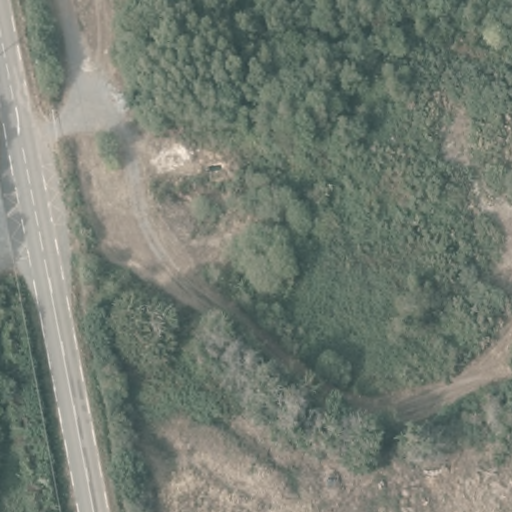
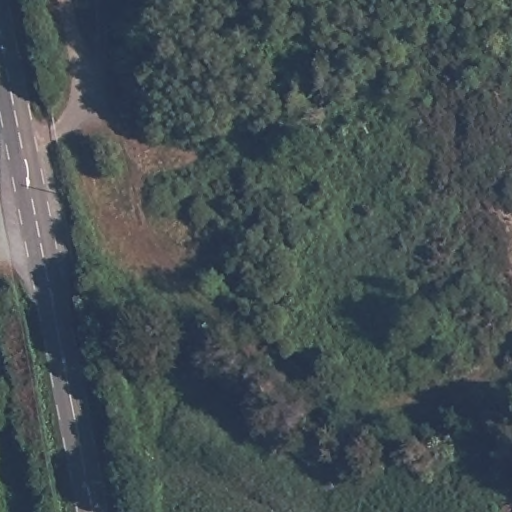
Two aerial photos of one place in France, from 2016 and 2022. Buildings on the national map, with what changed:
[]

